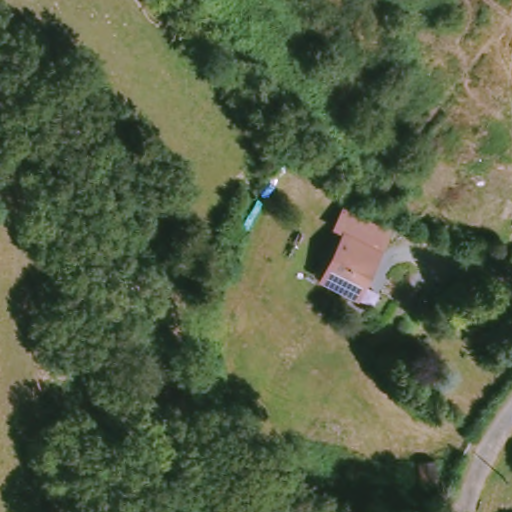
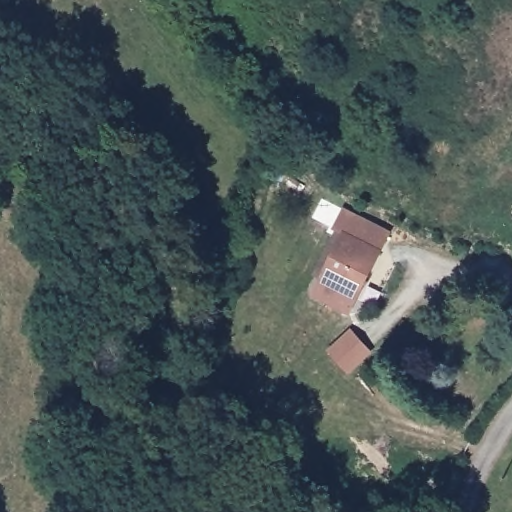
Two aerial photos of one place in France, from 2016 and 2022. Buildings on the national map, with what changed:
unchanged [(387,228),(355,294),(321,278),(344,231),(336,226),(346,207),(387,228)]
new [(351,377),(330,356),(353,333),(374,354),(351,377)]

